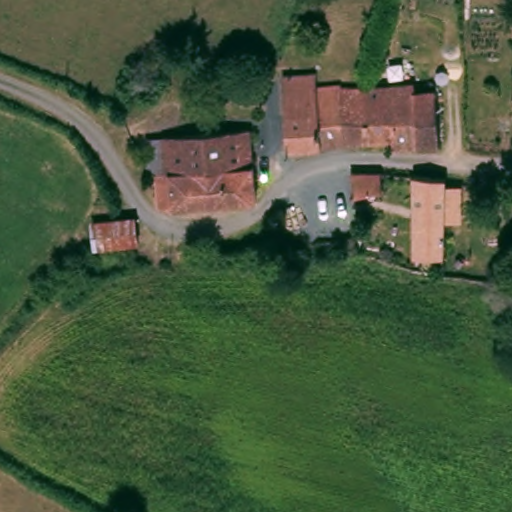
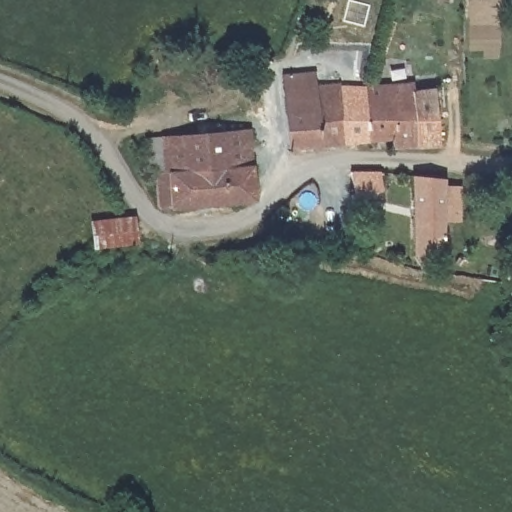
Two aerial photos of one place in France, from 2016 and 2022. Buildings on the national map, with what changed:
unchanged [(318,87),(317,99),(343,97),(344,99),(348,157),(291,161),(290,157),(285,89),(318,87)]
unchanged [(418,94),(419,104),(440,102),(443,161),(398,163),(397,154),(395,96),(418,94)]
unchanged [(371,97),(395,96),(397,154),(372,157),(370,97),(371,97)]
unchanged [(370,97),(372,157),(348,157),(344,99),(370,97)]
unchanged [(163,199),(160,180),(150,181),(148,166),(153,166),(150,134),(167,132),(190,130),(196,129),(209,127),(255,123),(258,152),(258,157),(262,196),(167,202),(163,199)]
unchanged [(385,192),(355,192),(354,167),(385,168),(385,192)]
unchanged [(422,255),(421,198),(419,199),(419,195),(419,176),(449,177),(450,254),(422,255)]
unchanged [(322,194),(326,211),(327,217),(328,227),(314,232),(308,199),(322,194)]
unchanged [(134,214),(139,239),(99,246),(95,222),(134,214)]
unchanged [(342,260),(340,252),(357,249),(361,267),(345,272),(342,260)]

